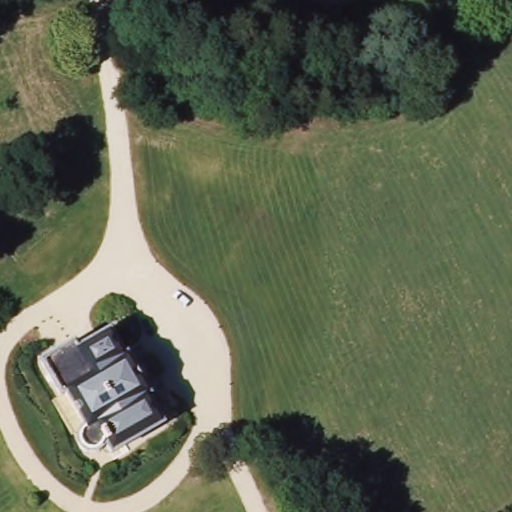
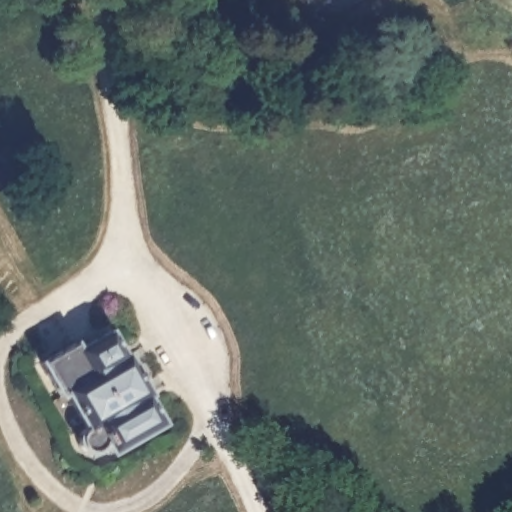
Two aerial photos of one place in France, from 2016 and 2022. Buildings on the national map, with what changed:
unchanged [(106,330),(162,424),(114,447),(104,452),(99,441),(89,449),(84,451),(81,451),(78,449),(75,446),(73,442),(73,439),(74,434),(76,430),(78,424),(61,394),(52,396),(33,361),(65,344),(69,351),(106,330)]

